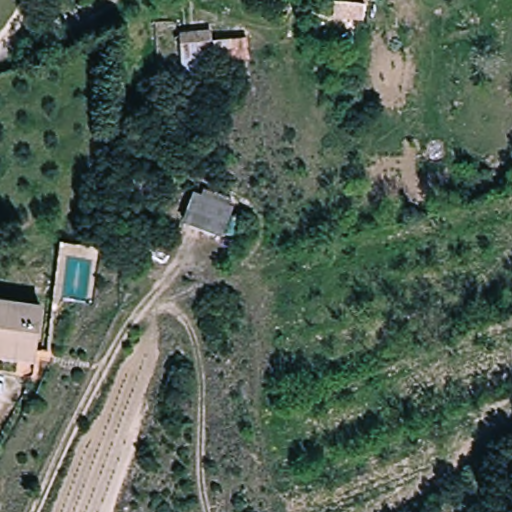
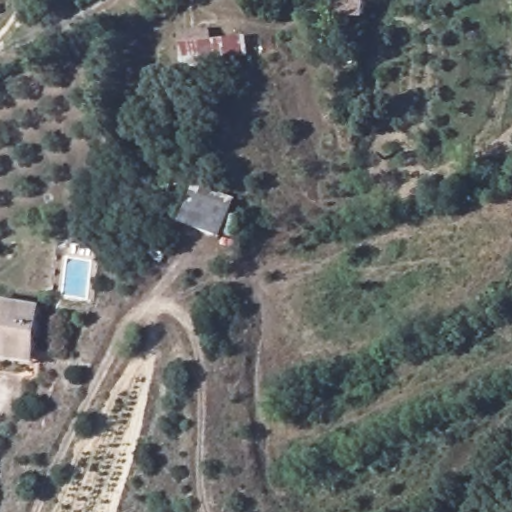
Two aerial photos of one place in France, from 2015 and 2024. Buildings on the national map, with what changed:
unchanged [(338,0),(368,0),(365,24),(335,21),(338,0)]
unchanged [(226,41),(227,62),(200,62),(201,77),(182,79),(180,43),(226,41)]
unchanged [(157,184),(151,198),(130,190),(135,176),(157,184)]
unchanged [(192,202),(227,217),(215,244),(180,229),(192,202)]
unchanged [(0,359),(0,304),(37,308),(32,351),(30,362),(0,359)]

